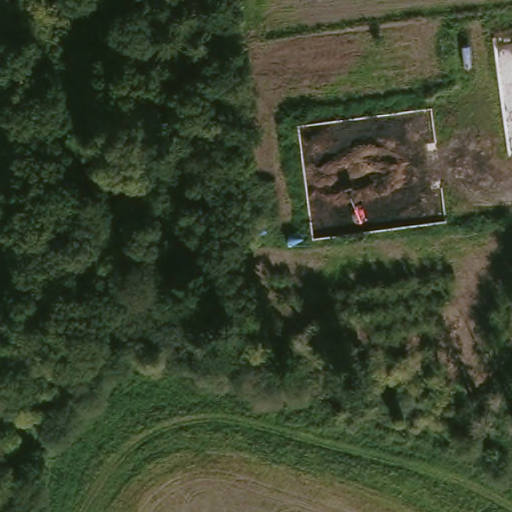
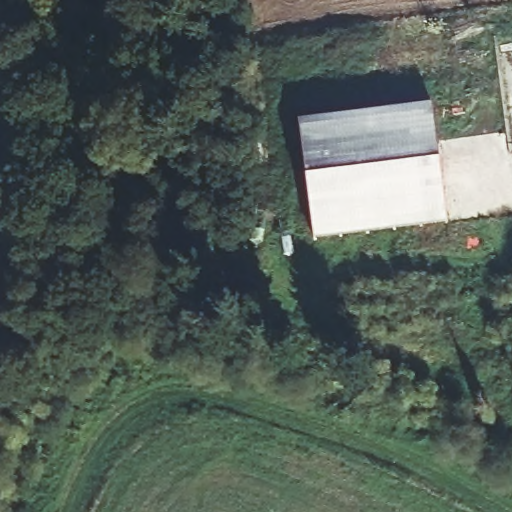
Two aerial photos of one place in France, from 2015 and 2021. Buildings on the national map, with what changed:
new [(432,112),(447,226),(313,245),(298,131),(432,112)]

